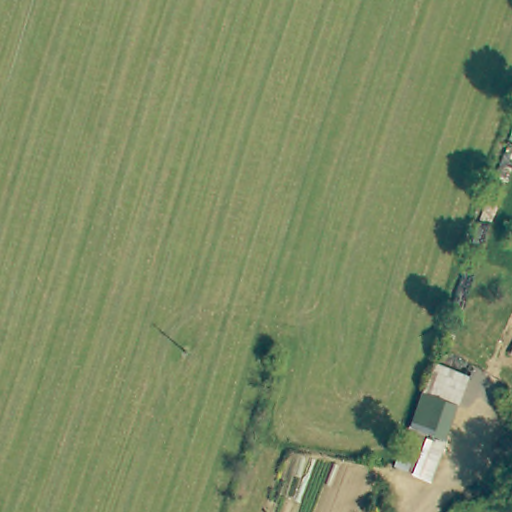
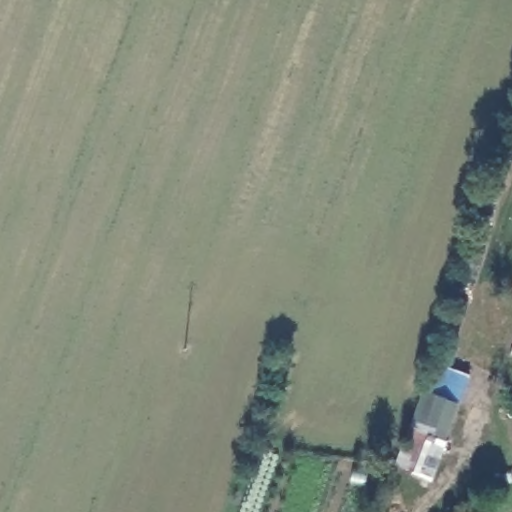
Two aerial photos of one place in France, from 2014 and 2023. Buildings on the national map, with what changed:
unchanged [(446,442),(409,432),(418,394),(457,403),(446,442)]

